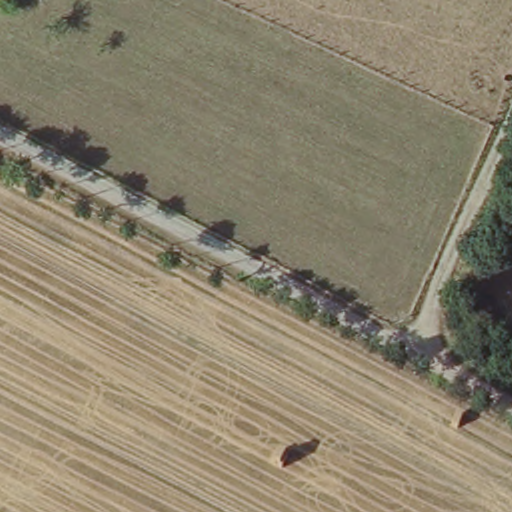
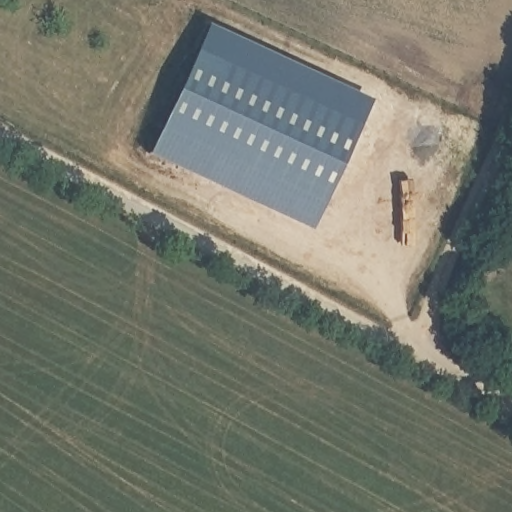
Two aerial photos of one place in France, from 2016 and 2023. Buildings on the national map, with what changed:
new [(370,99),(311,229),(148,153),(208,23),(370,99)]

